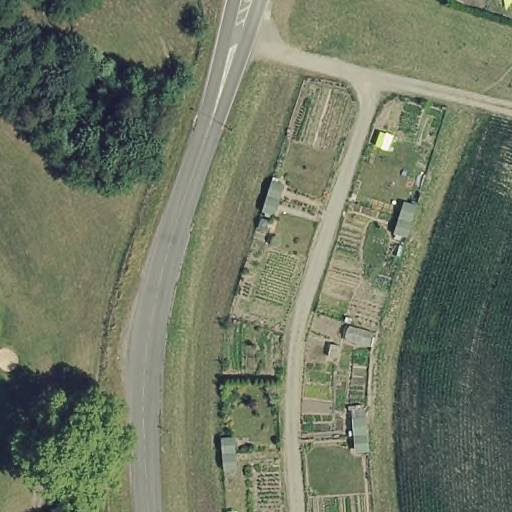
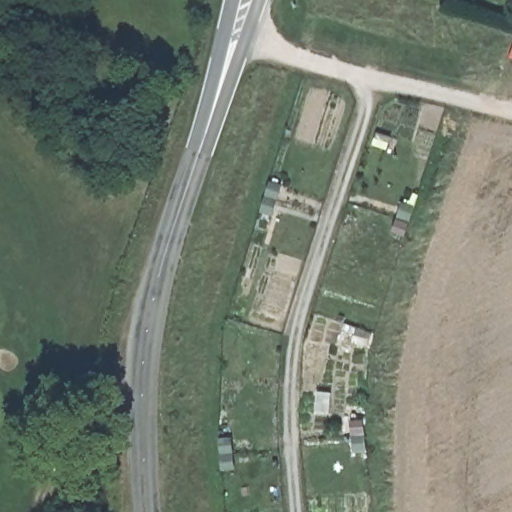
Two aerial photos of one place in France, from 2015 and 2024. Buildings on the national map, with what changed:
unchanged [(280,186),(276,198),(263,194),(267,182),(280,186)]
unchanged [(271,214),(258,210),(262,198),(275,202),(271,214)]
unchanged [(395,215),(399,203),(412,207),(408,219),(395,215)]
unchanged [(390,231),(394,219),(407,223),(403,236),(390,231)]
unchanged [(350,433),(349,421),(363,419),(364,432),(350,433)]
unchanged [(351,437),(364,436),(365,449),(351,450),(351,437)]
unchanged [(231,438),(232,451),(218,452),(218,440),(231,438)]
unchanged [(233,468),(220,469),(219,457),(232,456),(233,468)]

